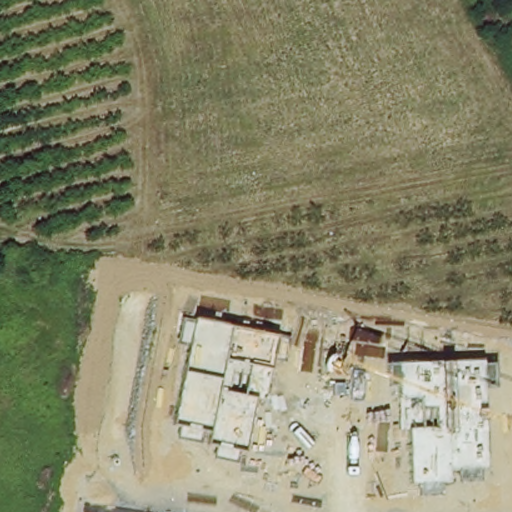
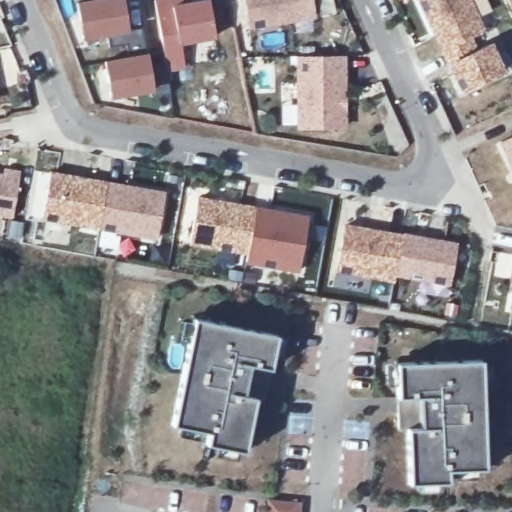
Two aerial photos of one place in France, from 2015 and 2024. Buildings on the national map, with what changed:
new [(151,91),(109,100),(103,60),(127,56),(126,45),(108,48),(106,37),(83,40),(76,2),(88,0),(122,0),(128,32),(140,30),(144,54),(148,54),(151,69),(168,68),(171,95),(153,98),(151,91)]
new [(171,5),(202,0),(209,0),(215,39),(178,45),(171,5)]
new [(245,0),(311,0),(314,20),(250,31),(245,0)]
new [(476,50),(491,42),(506,73),(461,95),(447,65),(442,52),(420,0),(470,0),(484,31),(471,38),(476,50)]
new [(296,129),(298,57),(346,57),(347,129),(296,129)]
new [(498,142),(512,136),(512,172),(498,142)]
new [(0,174),(3,175),(5,170),(20,175),(10,220),(0,218),(0,174)]
new [(42,220),(51,173),(165,195),(157,240),(42,220)]
new [(246,264),(247,255),(189,245),(198,199),(256,207),(310,218),(299,272),(246,264)]
new [(447,285),(395,276),(395,282),(336,272),(345,225),(404,235),(456,244),(447,285)]
new [(510,282),(512,267),(512,283),(510,282)]
new [(511,310),(512,301),(512,310),(511,310)]
unchanged [(196,321),(280,339),(266,403),(259,402),(246,456),(208,447),(211,436),(182,430),(173,428),(196,321)]
unchanged [(401,365),(487,363),(490,472),(453,473),(453,485),(413,486),(412,431),(403,431),(401,367),(401,365)]
unchanged [(272,504),(303,507),(302,512),(271,512),(272,504)]

